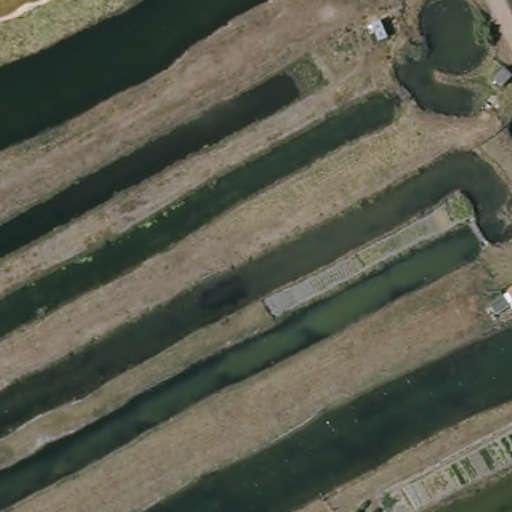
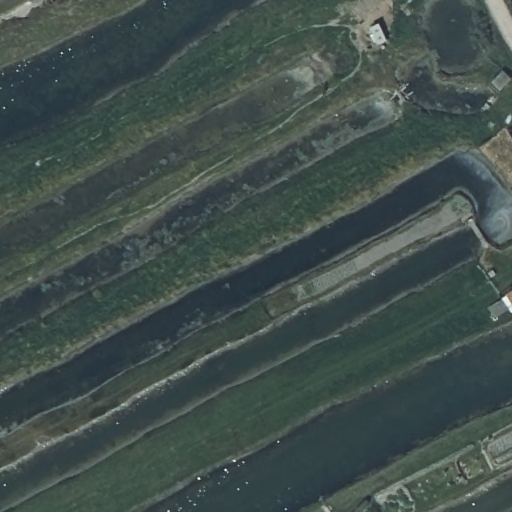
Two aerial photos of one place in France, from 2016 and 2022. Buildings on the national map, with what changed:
unchanged [(512,77),(512,79),(501,90),(491,82),(501,70),(512,77)]

